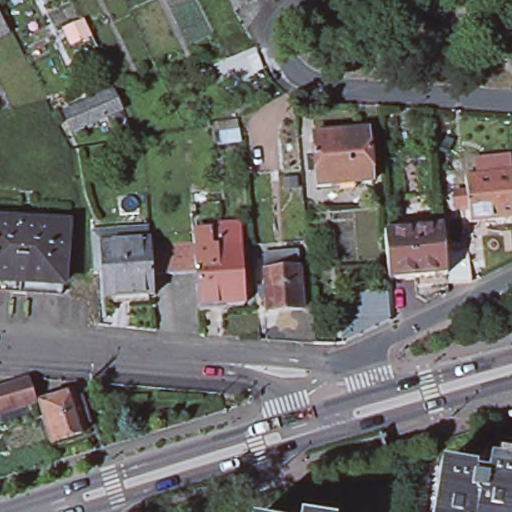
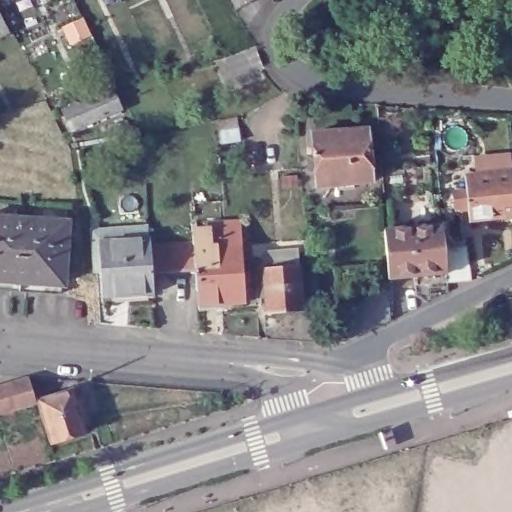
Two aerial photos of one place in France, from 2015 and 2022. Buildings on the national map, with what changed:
unchanged [(248,0),(238,5),(236,0),(248,0)]
unchanged [(0,36),(0,13),(9,31),(0,36)]
unchanged [(111,91),(120,110),(72,133),(63,115),(111,91)]
unchanged [(237,128),(239,141),(220,142),(220,130),(237,128)]
unchanged [(366,133),(371,184),(316,188),(312,136),(366,133)]
unchanged [(510,174),(512,173),(512,199),(510,174)]
unchanged [(510,174),(512,199),(512,220),(475,224),(465,225),(460,180),(470,178),(510,174)]
unchanged [(0,284),(0,213),(72,220),(69,290),(0,284)]
unchanged [(196,309),(195,275),(173,277),(151,278),(152,298),(104,301),(100,244),(149,241),(150,250),(171,249),(192,247),(191,235),(210,234),(210,226),(238,224),(240,249),(243,306),(196,309)]
unchanged [(443,227),(445,252),(448,277),(390,281),(386,231),(443,227)]
unchanged [(300,266),(302,307),(266,308),(263,268),(300,266)]
unchanged [(361,305),(360,293),(391,290),(393,321),(346,345),(342,345),(341,307),(361,305)]
unchanged [(37,405),(0,415),(0,389),(30,381),(37,405)]
unchanged [(75,392),(78,401),(84,399),(91,424),(85,426),(87,435),(55,444),(43,402),(75,392)]
demolished [(440,464),(473,470),(475,466),(486,468),(488,460),(492,435),(512,438),(512,512),(432,512),(440,464)]

